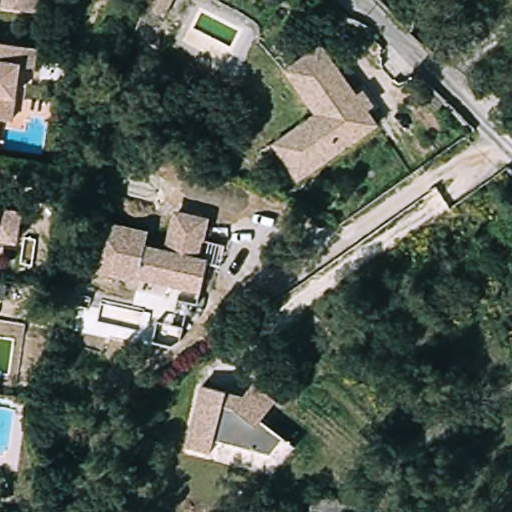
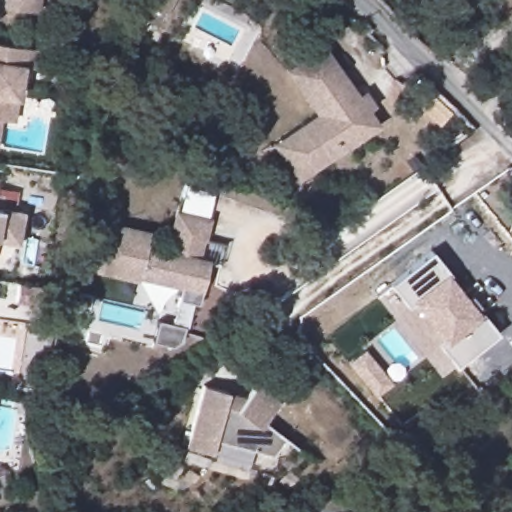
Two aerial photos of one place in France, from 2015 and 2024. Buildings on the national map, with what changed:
unchanged [(6,6),(6,0),(42,0),(40,11),(6,6)]
unchanged [(170,21),(165,19),(159,29),(146,22),(154,0),(179,0),(170,21)]
unchanged [(314,112),(283,68),(321,42),(357,92),(363,89),(374,104),(368,108),(379,124),(297,181),(270,142),(314,112)]
unchanged [(35,48),(33,65),(20,64),(12,118),(0,116),(0,43),(35,48)]
unchanged [(18,210),(13,244),(0,242),(0,207),(18,210)]
unchanged [(101,218),(153,229),(149,246),(168,251),(177,207),(213,215),(208,237),(197,237),(191,257),(211,261),(207,278),(188,275),(185,290),(90,268),(101,218)]
new [(430,250),(449,273),(447,275),(477,313),(480,311),(498,334),(456,367),(438,345),(443,342),(412,302),(407,307),(389,283),(430,250)]
unchanged [(0,295),(0,278),(5,279),(3,296),(0,295)]
new [(392,385),(375,398),(347,363),(364,350),(392,385)]
unchanged [(258,359),(284,377),(266,402),(240,383),(258,359)]
unchanged [(229,379),(222,409),(280,424),(270,466),(184,444),(202,372),(229,379)]

